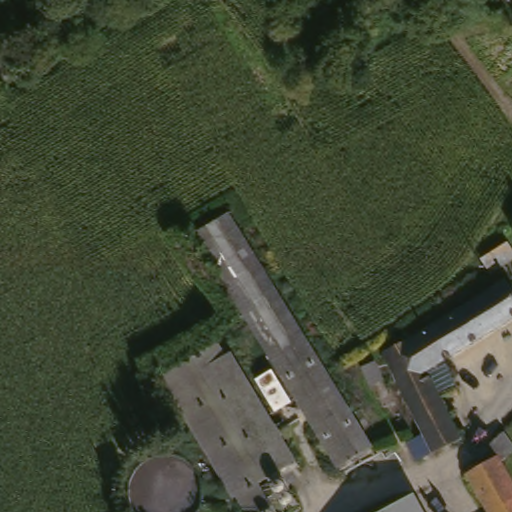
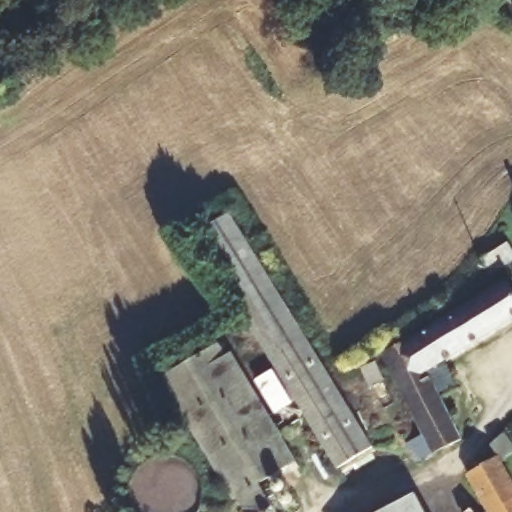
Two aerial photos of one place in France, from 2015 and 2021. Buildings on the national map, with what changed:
unchanged [(371,453),(333,478),(193,240),(229,219),(371,453)]
unchanged [(512,254),(512,265),(490,278),(479,261),(506,245),(512,254)]
unchanged [(422,437),(381,352),(505,276),(512,289),(512,322),(427,369),(460,441),(431,456),(415,464),(405,445),(422,437)]
unchanged [(260,491),(272,512),(244,512),(238,502),(233,504),(163,383),(215,350),(288,472),(260,491)]
unchanged [(396,398),(369,415),(362,405),(391,388),(396,398)]
unchanged [(503,456),(492,438),(503,432),(512,445),(512,455),(505,458),(512,473),(512,512),(485,512),(464,476),(503,456)]
unchanged [(418,512),(379,512),(408,495),(418,512)]

